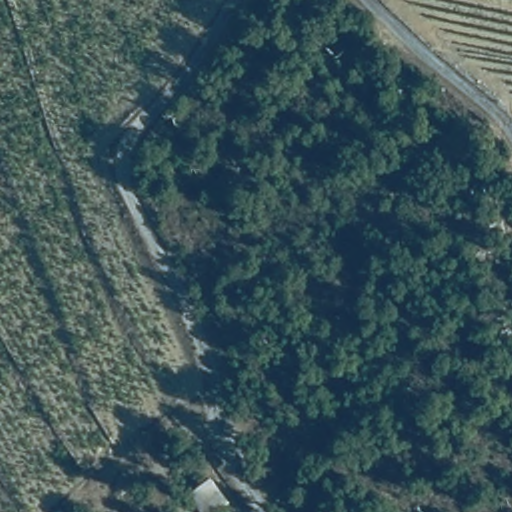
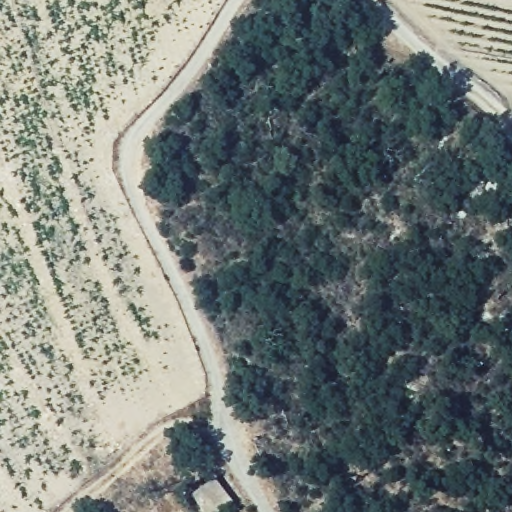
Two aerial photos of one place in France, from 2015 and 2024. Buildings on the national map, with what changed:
unchanged [(203,512),(195,501),(213,483),(232,508),(225,512),(203,512)]

